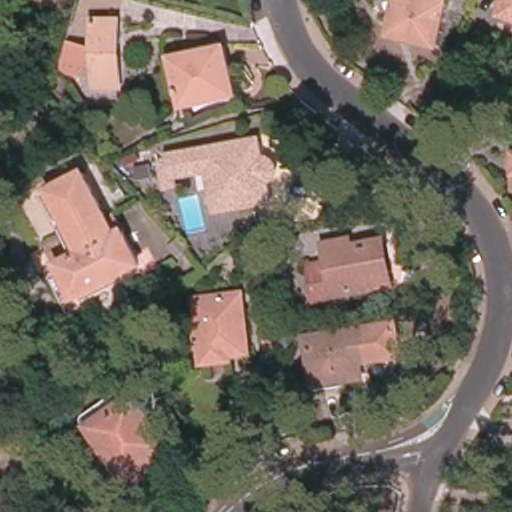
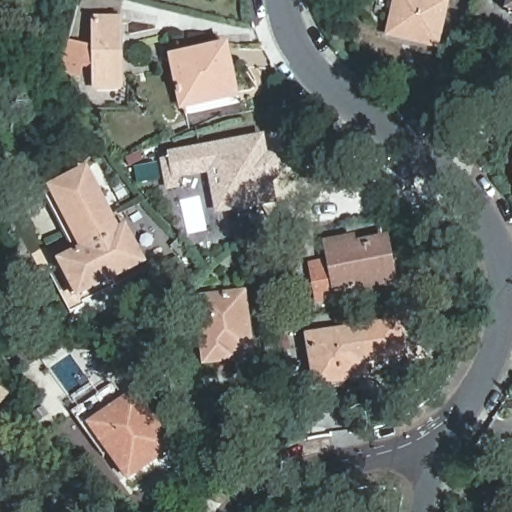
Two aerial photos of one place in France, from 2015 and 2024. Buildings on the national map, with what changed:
unchanged [(393,19),(398,0),(443,0),(446,0),(436,42),(417,37),(390,31),(393,19)]
unchanged [(92,84),(93,31),(93,27),(94,23),(107,23),(117,23),(117,24),(115,85),(92,84)]
unchanged [(66,62),(70,41),(87,45),(82,70),(65,68),(66,62)]
unchanged [(228,76),(232,94),(180,104),(172,59),(220,50),(229,49),(232,66),(223,67),(225,77),(228,76)]
unchanged [(361,138),(369,145),(352,164),(335,150),(351,131),(361,138)]
unchanged [(259,195),(221,203),(212,163),(176,170),(178,180),(169,182),(164,157),(174,155),(173,152),(250,135),(262,133),(263,140),(266,151),(269,151),(272,151),(276,152),(279,155),(281,158),(282,162),(281,167),(278,170),(276,172),(270,173),(274,192),(259,195)]
unchanged [(81,300),(68,306),(58,284),(72,278),(61,255),(74,249),(46,185),(56,181),(89,166),(111,212),(119,209),(137,249),(150,243),(159,263),(146,270),(145,267),(79,296),(81,300)]
unchanged [(190,257),(178,245),(189,235),(199,247),(215,233),(231,251),(222,260),(216,265),(200,248),(190,257)]
unchanged [(390,287),(327,297),(321,269),(339,265),(337,250),(360,246),(361,252),(392,247),(397,275),(398,285),(390,287)]
unchanged [(209,367),(207,355),(204,355),(197,293),(241,289),(246,344),(229,346),(230,352),(226,353),(227,365),(209,367)]
unchanged [(317,384),(312,339),(400,328),(403,359),(362,364),(365,378),(342,381),(317,384)]
unchanged [(2,398),(0,401),(0,397),(2,398)]
unchanged [(132,478),(91,424),(129,397),(171,451),(132,478)]

